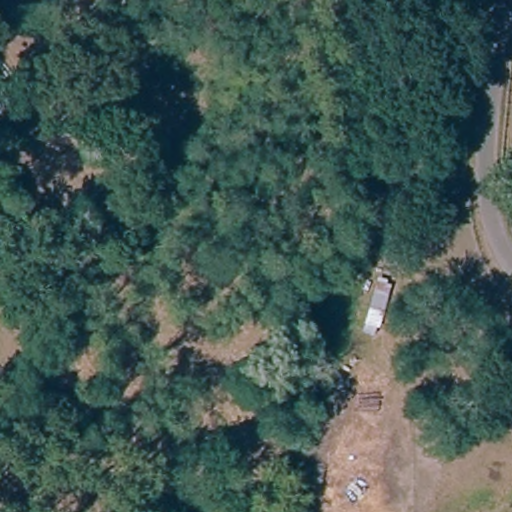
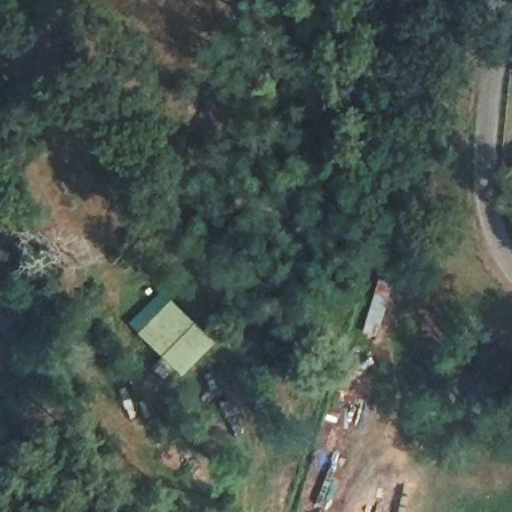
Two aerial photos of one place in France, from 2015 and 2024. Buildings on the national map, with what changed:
new [(161,291),(211,342),(178,375),(127,323),(161,291)]

